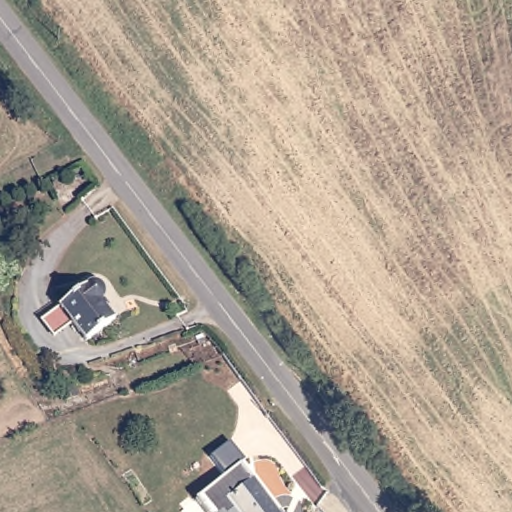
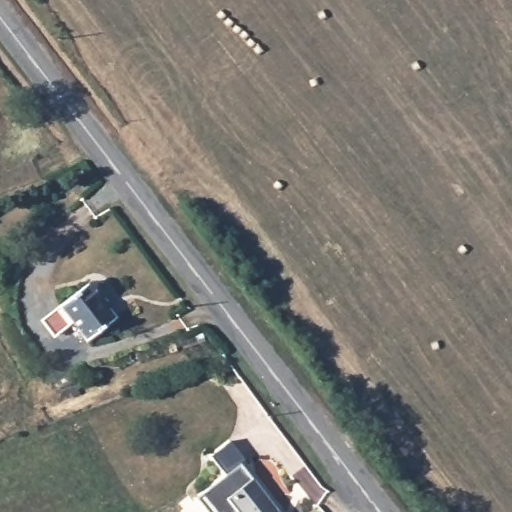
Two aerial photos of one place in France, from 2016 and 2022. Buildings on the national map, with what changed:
unchanged [(45,319),(63,305),(92,283),(95,282),(101,284),(104,288),(104,295),(100,298),(116,318),(88,338),(74,320),(56,333),(45,319)]
unchanged [(205,481),(258,463),(274,512),(215,512),(205,481)]

